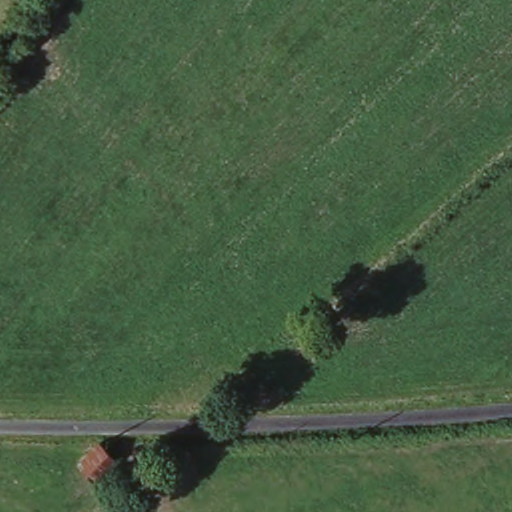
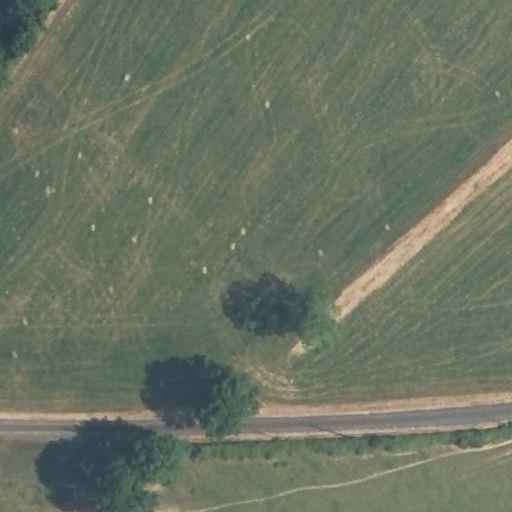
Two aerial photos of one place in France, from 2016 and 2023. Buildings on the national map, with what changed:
unchanged [(112,457),(94,476),(91,476),(75,461),(97,441),(112,457)]

